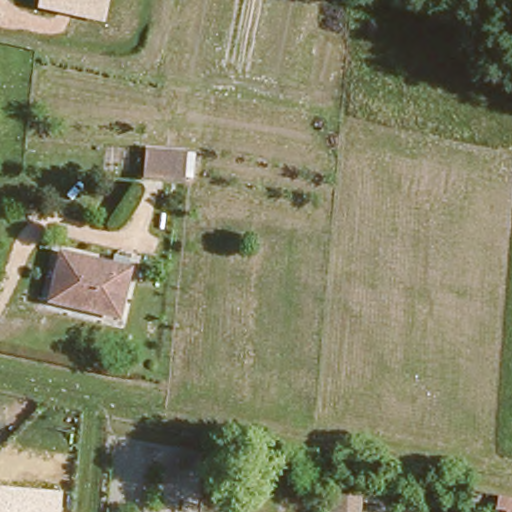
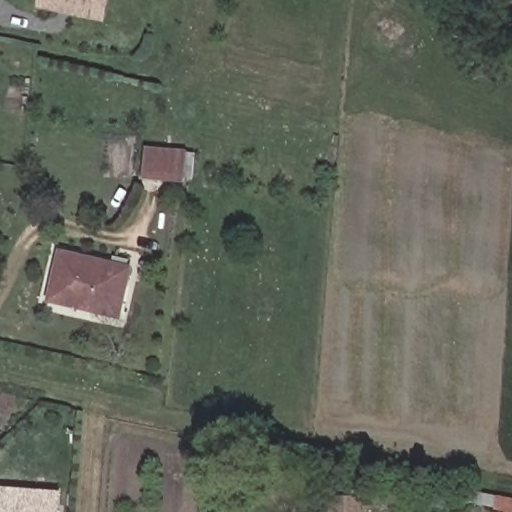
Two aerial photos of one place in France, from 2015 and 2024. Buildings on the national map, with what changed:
unchanged [(38,8),(40,0),(110,0),(106,21),(38,8)]
unchanged [(133,136),(187,146),(183,182),(129,177),(133,136)]
unchanged [(125,262),(115,305),(63,293),(49,290),(57,250),(66,252),(125,262)]
unchanged [(62,512),(0,512),(0,488),(64,492),(62,512)]
unchanged [(327,490),(364,493),(363,512),(325,512),(327,490)]
unchanged [(507,503),(512,504),(512,512),(505,512),(507,503)]

